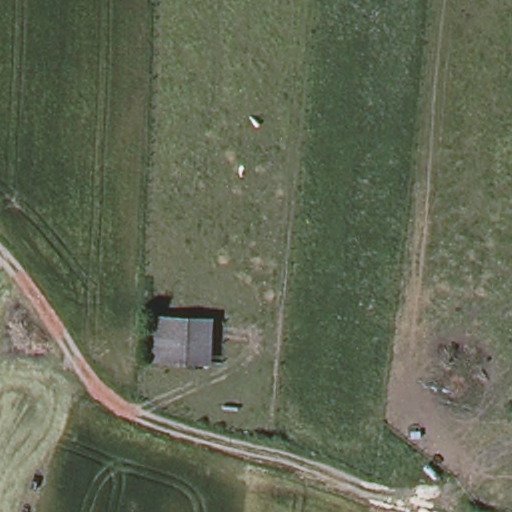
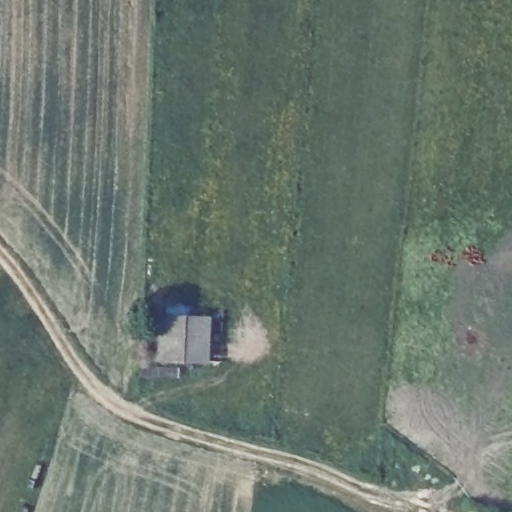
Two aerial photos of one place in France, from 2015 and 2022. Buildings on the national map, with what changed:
unchanged [(146,312),(214,315),(213,366),(145,357),(146,312)]

